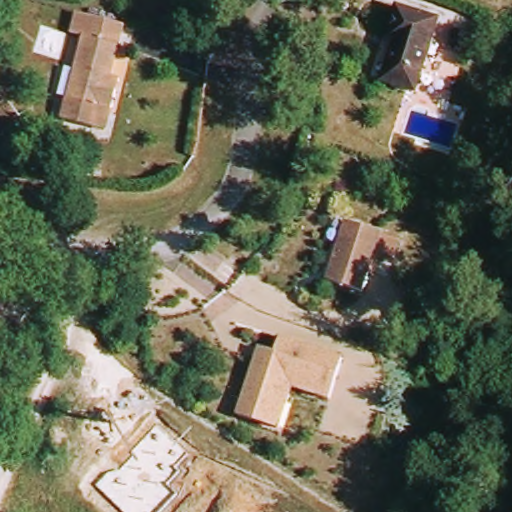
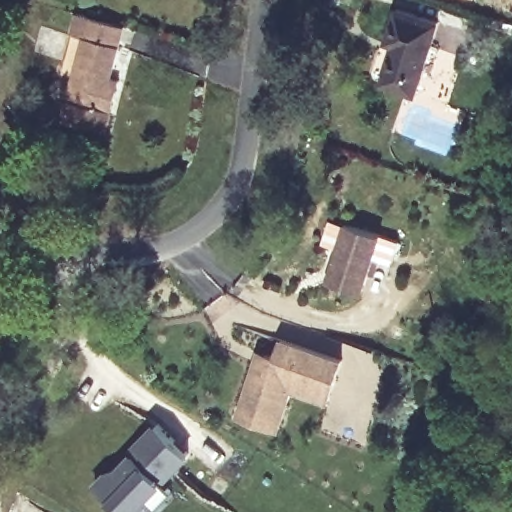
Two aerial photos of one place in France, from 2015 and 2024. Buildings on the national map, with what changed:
unchanged [(62,112),(91,10),(128,21),(113,73),(123,75),(114,107),(108,126),(93,122),(62,112)]
unchanged [(436,25),(416,95),(383,86),(393,50),(385,47),(395,14),(436,25)]
unchanged [(323,280),(341,222),(377,234),(358,292),(323,280)]
unchanged [(245,404),(258,368),(263,353),(272,357),(278,360),(283,343),(345,365),(331,403),(297,390),(289,411),(282,427),(278,436),(240,420),(245,404)]
new [(130,449),(156,421),(190,455),(166,483),(175,491),(157,510),(149,502),(140,512),(124,512),(94,483),(106,470),(119,466),(132,451),(130,449)]

